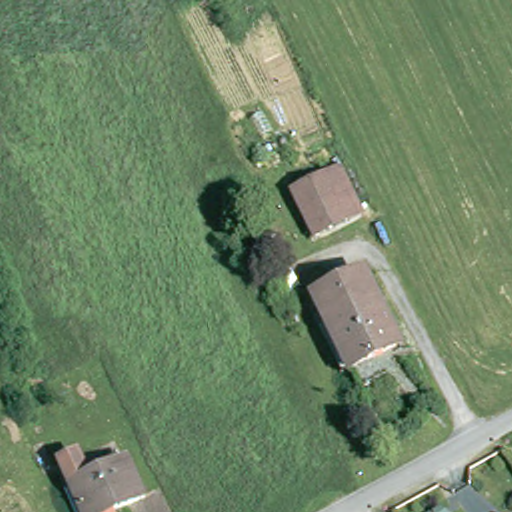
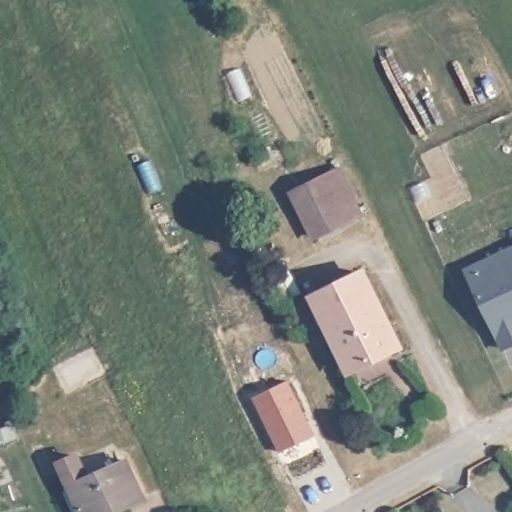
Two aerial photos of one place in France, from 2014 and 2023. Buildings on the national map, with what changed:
unchanged [(318,235),(298,191),(341,171),(361,216),(318,235)]
new [(466,274),(512,253),(512,349),(503,353),(466,274)]
unchanged [(401,347),(352,371),(317,294),(366,270),(401,347)]
new [(291,381),(317,436),(283,451),(257,396),(291,381)]
unchanged [(67,463),(66,460),(85,452),(86,455),(95,474),(132,458),(150,497),(114,512),(87,512),(67,463)]
unchanged [(440,498),(448,510),(445,512),(439,512),(433,504),(440,498)]
unchanged [(426,510),(428,512),(424,512),(426,510)]

